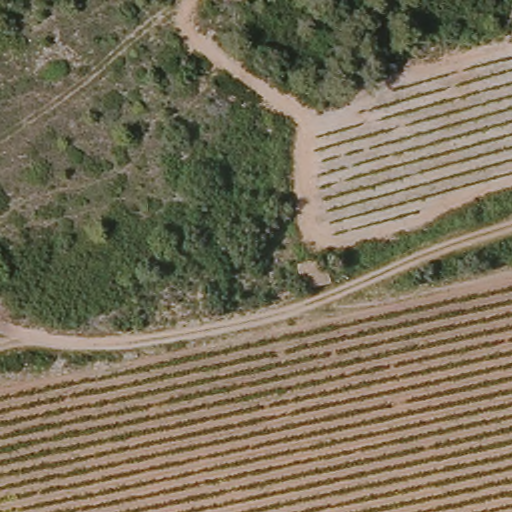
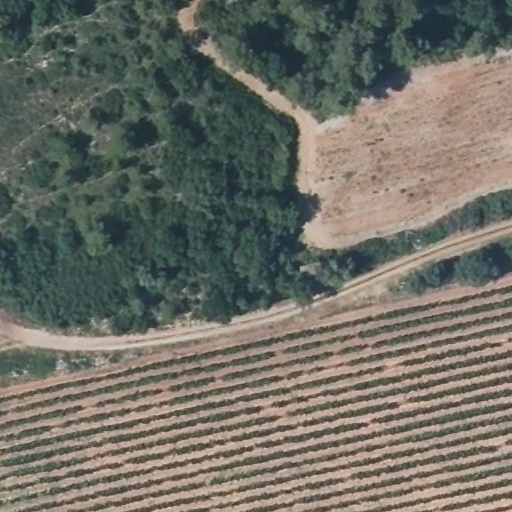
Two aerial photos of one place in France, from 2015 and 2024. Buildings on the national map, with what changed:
unchanged [(332,281),(306,290),(299,262),(322,254),(322,256),(332,281)]

